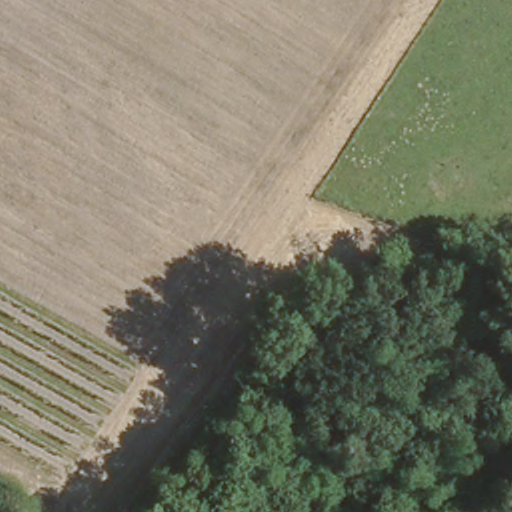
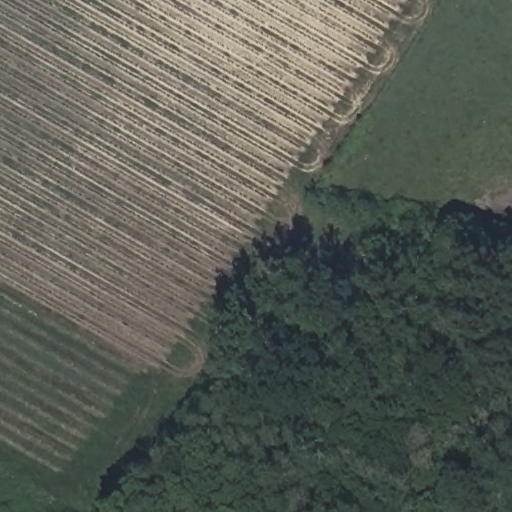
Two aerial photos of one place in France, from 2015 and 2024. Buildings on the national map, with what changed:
[]

